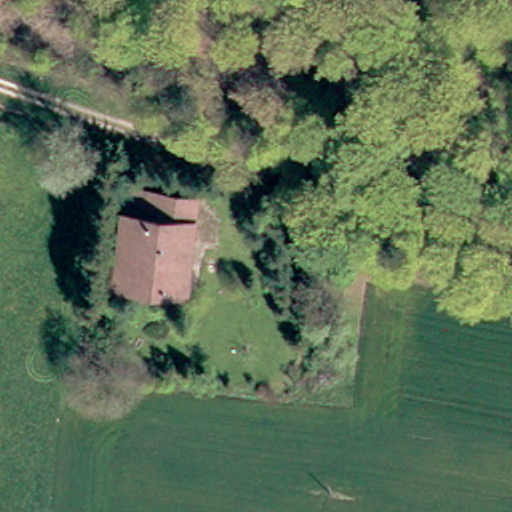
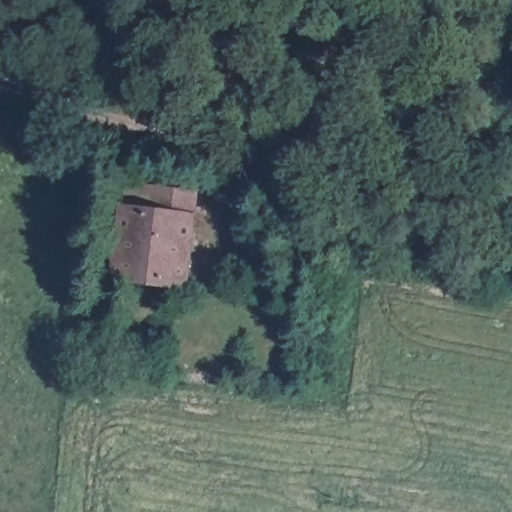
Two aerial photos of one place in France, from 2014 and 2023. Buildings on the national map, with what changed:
unchanged [(150,188),(198,194),(185,289),(115,279),(125,208),(147,211),(150,188)]

